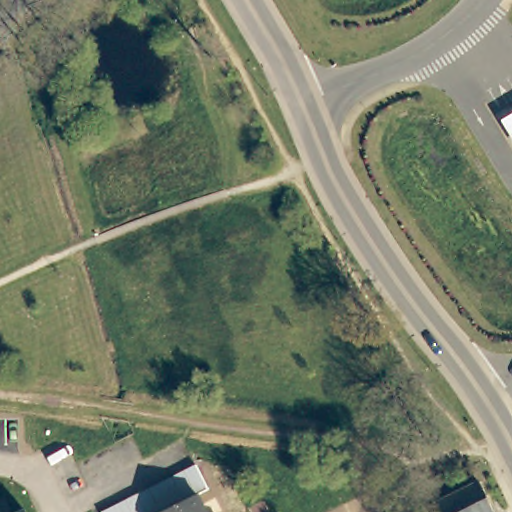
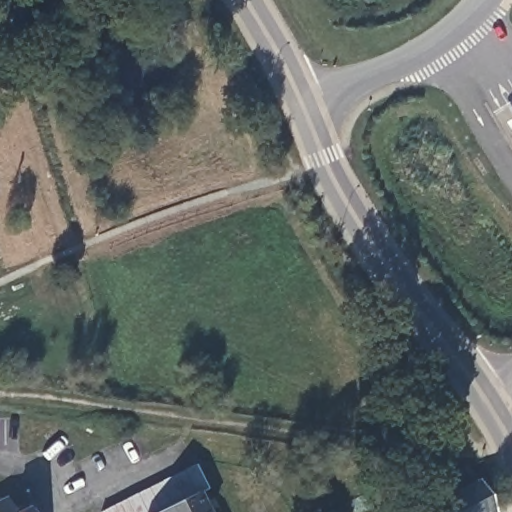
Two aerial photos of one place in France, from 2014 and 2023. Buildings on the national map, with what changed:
unchanged [(512,102),(512,139),(508,141),(492,115),(512,102)]
unchanged [(162,481),(189,467),(202,492),(191,499),(198,512),(104,512),(160,482),(162,481)]
unchanged [(478,479),(493,510),(490,512),(437,512),(432,501),(478,479)]
unchanged [(15,510),(26,505),(30,512),(0,512),(0,498),(9,495),(15,510)]

